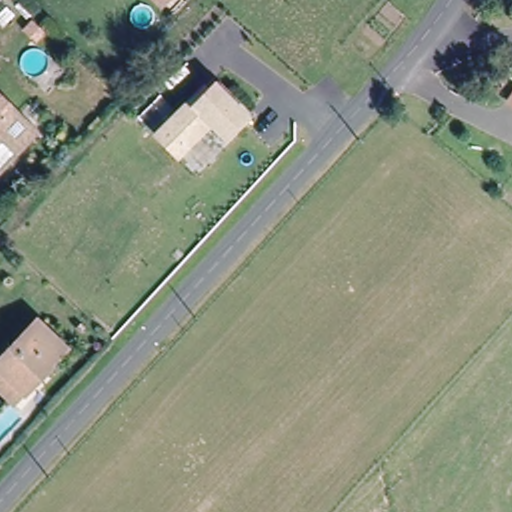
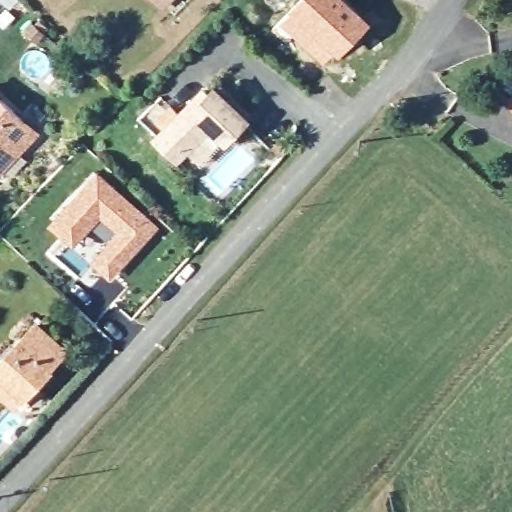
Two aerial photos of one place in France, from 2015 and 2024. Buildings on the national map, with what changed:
new [(351,0),(372,21),(339,55),(334,51),(323,62),(279,21),(298,0),(351,0)]
unchanged [(254,118),(228,148),(212,133),(178,164),(153,136),(206,86),(209,88),(216,81),(254,118)]
unchanged [(37,131),(19,150),(0,169),(0,94),(37,131)]
new [(97,174),(156,227),(111,276),(96,262),(123,232),(101,212),(74,243),(53,224),(97,174)]
unchanged [(0,388),(0,358),(38,319),(67,346),(25,389),(14,400),(0,388)]

